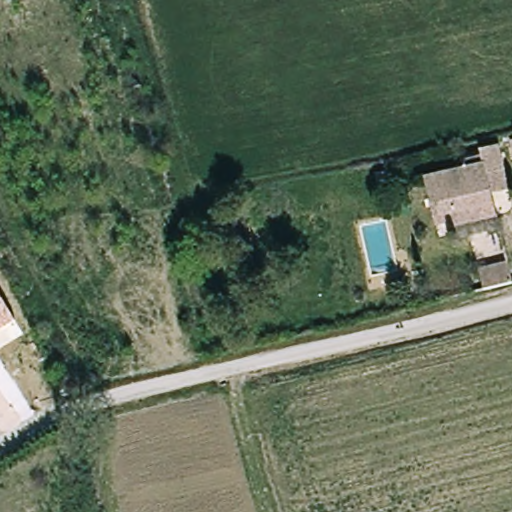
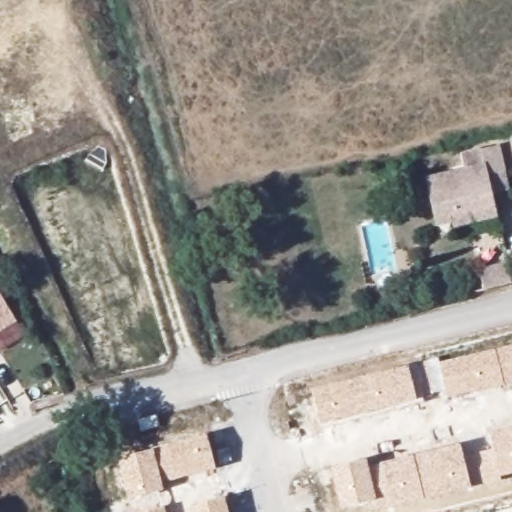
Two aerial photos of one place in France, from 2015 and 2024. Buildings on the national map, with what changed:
unchanged [(510,191),(492,195),(499,222),(457,232),(451,219),(435,223),(425,179),(483,165),(481,151),(500,147),(507,170),(510,191)]
unchanged [(483,275),(512,269),(512,272),(512,290),(487,295),(483,275)]
unchanged [(0,327),(0,294),(15,317),(0,327)]
new [(447,400),(445,391),(438,363),(512,346),(512,383),(447,400)]
new [(445,391),(417,397),(417,401),(322,427),(310,390),(407,366),(437,358),(438,363),(445,391)]
new [(500,477),(500,481),(471,487),(392,507),(376,512),(374,512),(372,501),(341,509),(330,468),(367,460),(368,467),(382,463),(460,445),(463,456),(492,450),(489,434),(512,429),(512,474),(500,477)]
new [(152,450),(207,434),(216,470),(162,483),(165,490),(128,500),(118,462),(152,450)]
new [(190,508),(225,498),(228,512),(191,512),(190,508)]
new [(165,507),(166,512),(147,512),(165,507)]

